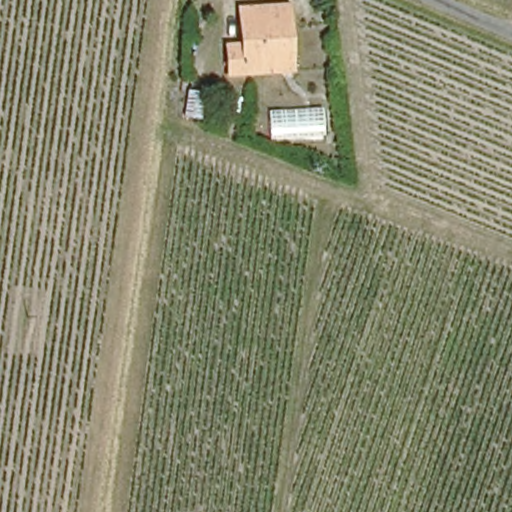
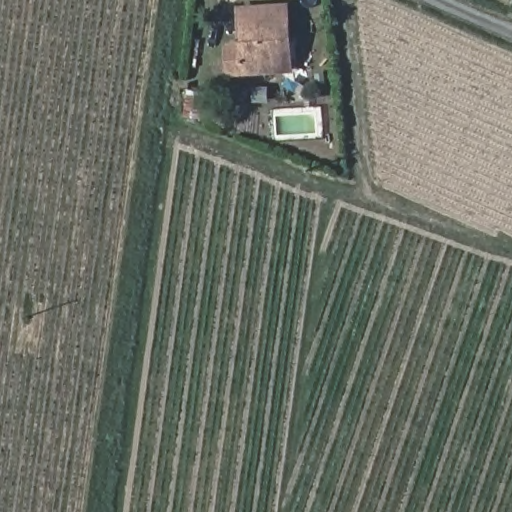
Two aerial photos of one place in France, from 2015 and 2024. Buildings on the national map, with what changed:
unchanged [(284,72),(234,79),(231,51),(244,49),(239,13),(289,7),(292,30),(297,71),(284,72)]

